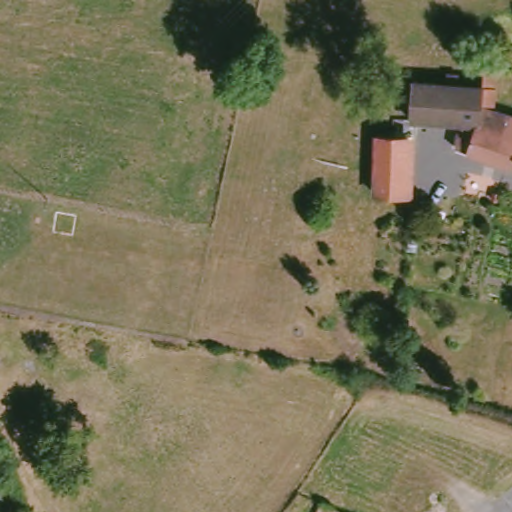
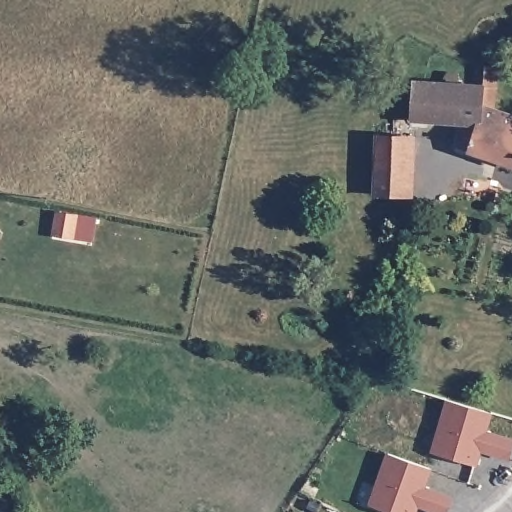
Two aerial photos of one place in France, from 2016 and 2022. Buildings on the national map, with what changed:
unchanged [(496,70),(495,110),(512,117),(512,167),(458,150),(460,124),(414,121),(416,85),(486,87),(486,70),(496,70)]
unchanged [(414,140),(413,196),(381,196),(384,140),(414,140)]
new [(431,451),(447,399),(493,412),(488,430),(512,437),(512,452),(511,458),(481,451),(477,465),(431,451)]
new [(387,452),(432,469),(427,487),(454,496),(449,512),(437,512),(419,505),(416,512),(395,512),(369,503),(387,452)]

